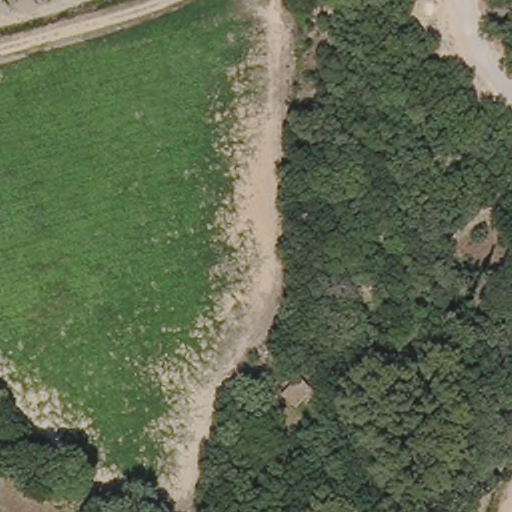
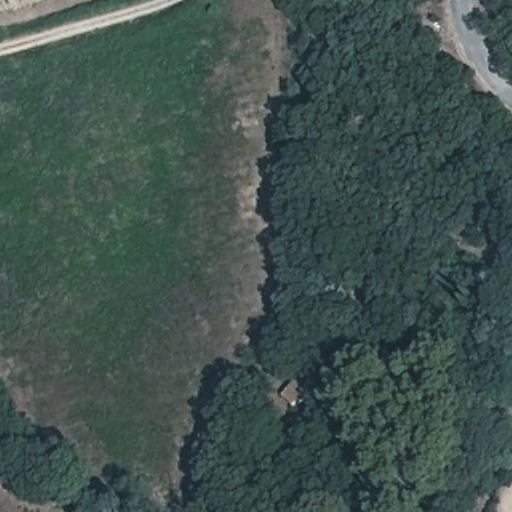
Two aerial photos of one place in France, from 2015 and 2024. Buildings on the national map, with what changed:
unchanged [(296,379),(314,394),(295,413),(278,397),(296,379)]

